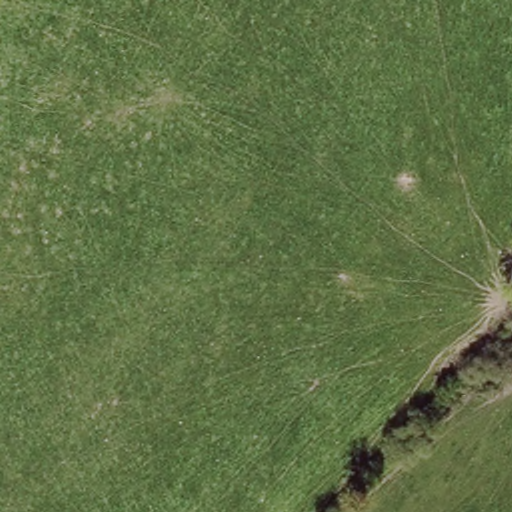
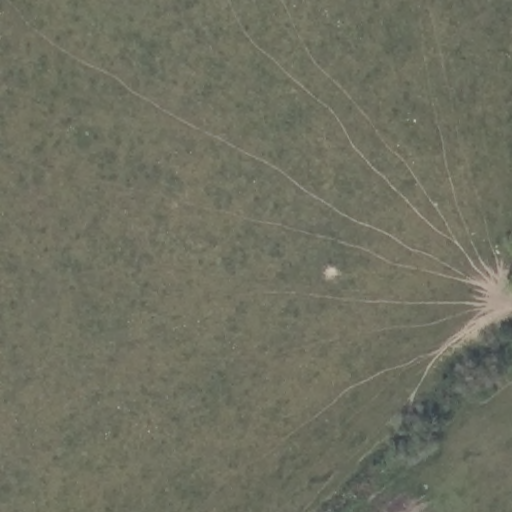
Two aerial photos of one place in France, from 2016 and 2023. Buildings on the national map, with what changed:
[]

